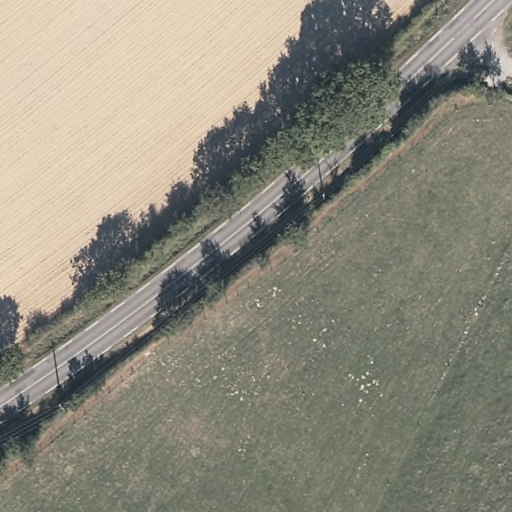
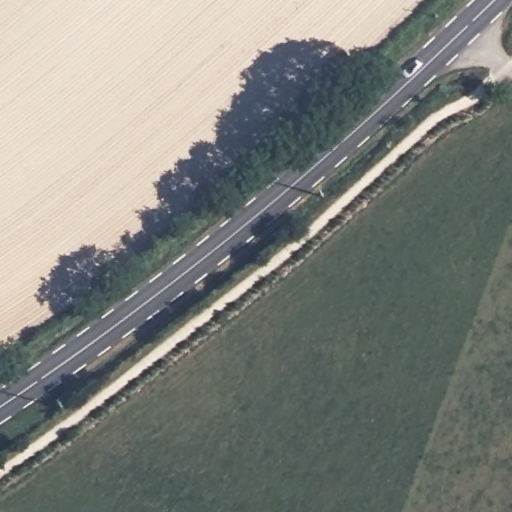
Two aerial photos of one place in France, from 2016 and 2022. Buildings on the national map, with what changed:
[]

